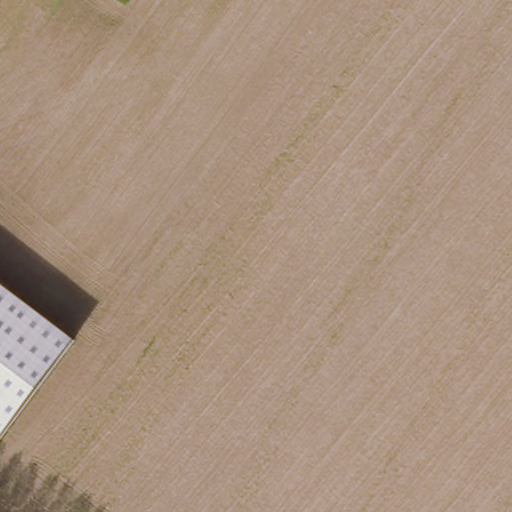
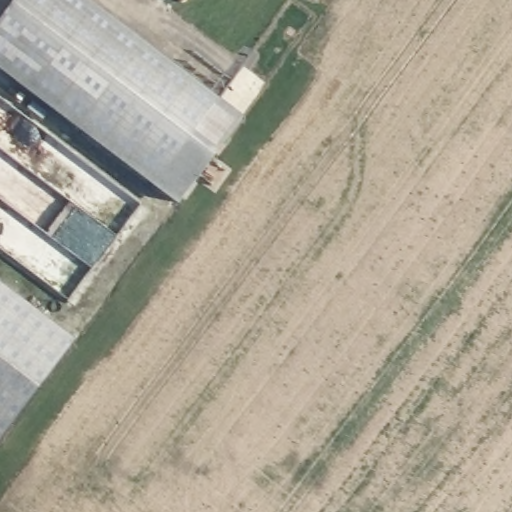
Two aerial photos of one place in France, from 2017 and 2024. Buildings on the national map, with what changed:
new [(152,188),(154,185),(0,72),(0,53),(2,50),(0,48),(0,18),(14,0),(87,0),(164,58),(160,64),(175,75),(180,70),(242,117),(175,206),(152,188)]
unchanged [(75,344),(0,443),(0,288),(75,344)]

